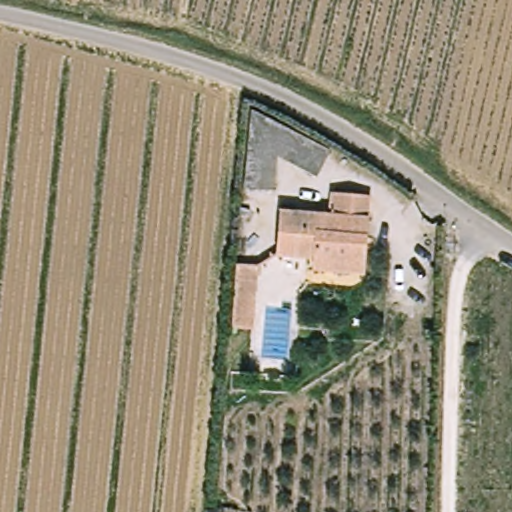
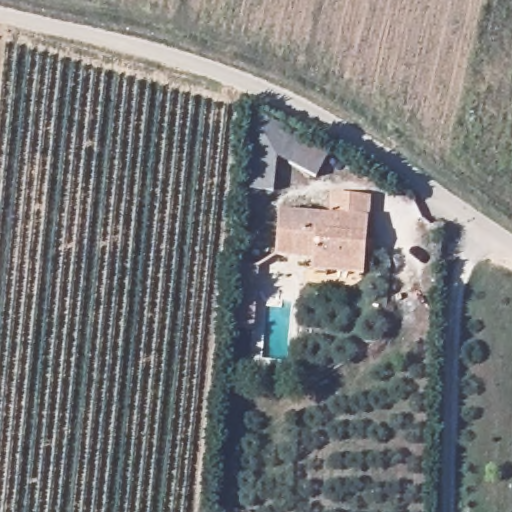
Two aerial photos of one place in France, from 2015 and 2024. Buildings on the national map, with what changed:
unchanged [(330,150),(324,179),(284,156),(281,188),(254,187),(261,107),(330,150)]
unchanged [(342,273),(313,270),(314,259),(278,256),(282,211),(328,217),(329,196),(376,202),(372,240),(368,276),(342,273)]
unchanged [(263,268),(257,333),(240,331),(243,266),(263,268)]

